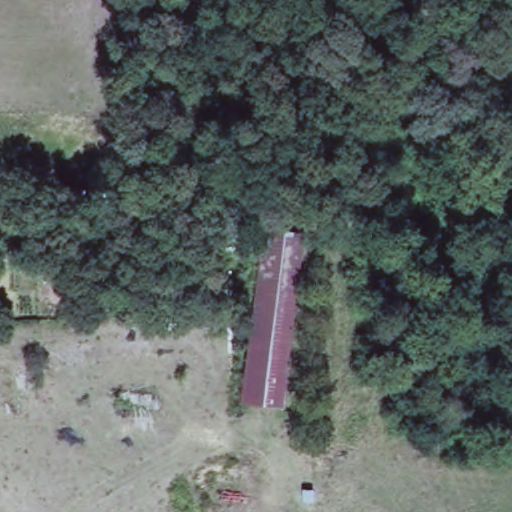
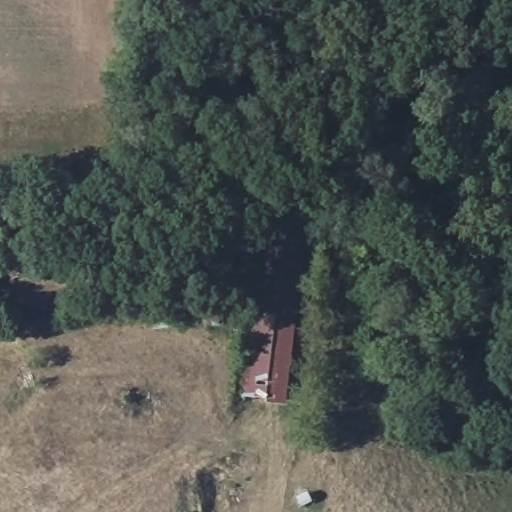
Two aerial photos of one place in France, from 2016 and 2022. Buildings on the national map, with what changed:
unchanged [(269,225),(315,230),(293,406),(245,403),(269,225)]

